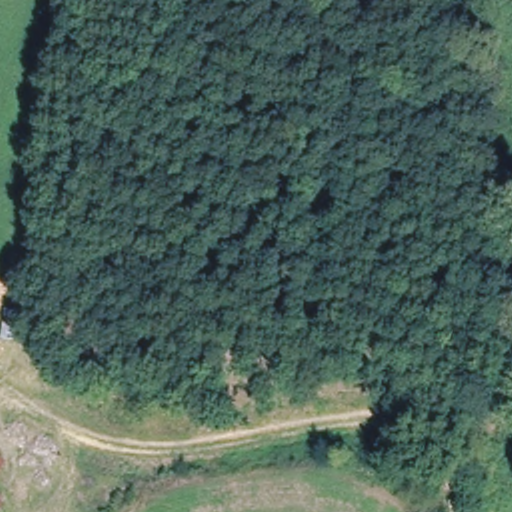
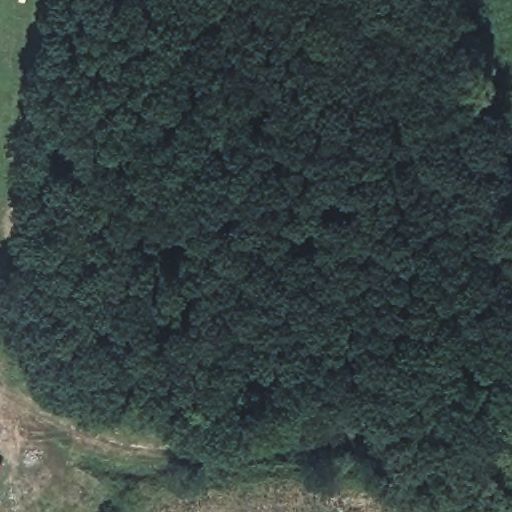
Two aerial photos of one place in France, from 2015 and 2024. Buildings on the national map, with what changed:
unchanged [(0,468),(0,461),(3,463),(0,468)]
unchanged [(0,501),(0,498),(1,499),(0,501)]

